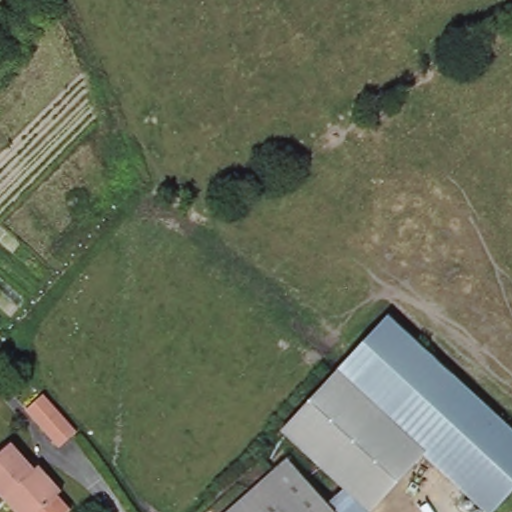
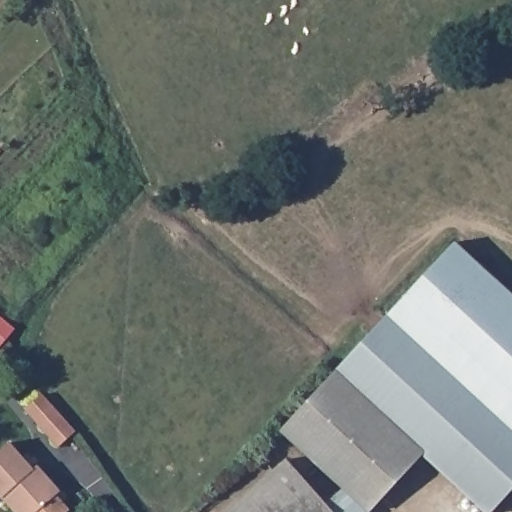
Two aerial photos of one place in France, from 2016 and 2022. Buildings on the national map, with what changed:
new [(390,315),(455,242),(512,293),(512,429),(390,315)]
unchanged [(368,408),(338,379),(339,370),(390,315),(512,429),(512,492),(494,512),(484,512),(420,458),(368,408)]
unchanged [(300,453),(283,436),(338,379),(368,408),(424,462),(376,512),(361,512),(300,453)]
unchanged [(44,391),(76,429),(60,444),(27,406),(44,391)]
unchanged [(33,473),(39,469),(59,491),(34,512),(17,512),(5,497),(0,501),(0,500),(0,456),(11,447),(33,473)]
unchanged [(327,512),(227,512),(284,463),(327,512)]
unchanged [(342,499),(354,512),(327,512),(342,499)]

